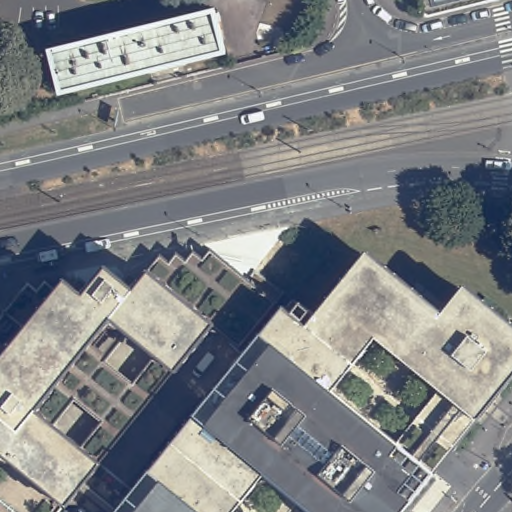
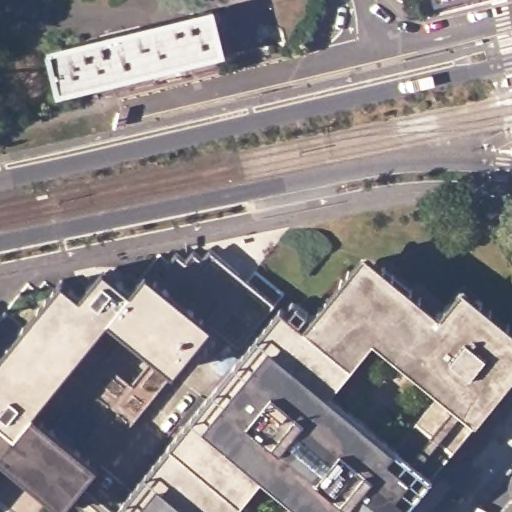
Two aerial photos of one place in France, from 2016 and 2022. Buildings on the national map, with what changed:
unchanged [(52,57),(215,16),(227,57),(61,99),(52,57)]
unchanged [(70,279),(84,290),(86,292),(102,275),(110,275),(126,288),(150,257),(160,262),(169,253),(178,260),(187,249),(197,256),(206,246),(284,310),(119,512),(69,512),(0,455),(0,363),(60,292),(70,279)]
unchanged [(512,330),(512,341),(504,350),(512,355),(512,381),(457,450),(292,317),(288,312),(295,303),(309,314),(348,270),(367,286),(381,268),(439,312),(456,290),(457,290),(459,287),(465,292),(512,330)]
unchanged [(284,310),(288,312),(292,317),(457,450),(407,512),(119,512),(284,310)]
unchanged [(69,512),(0,512),(0,455),(69,512)]

